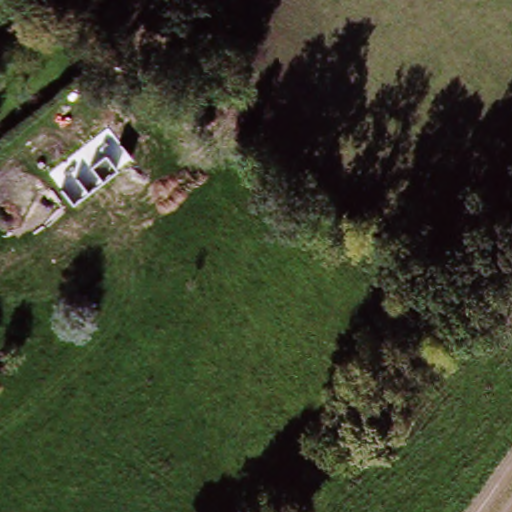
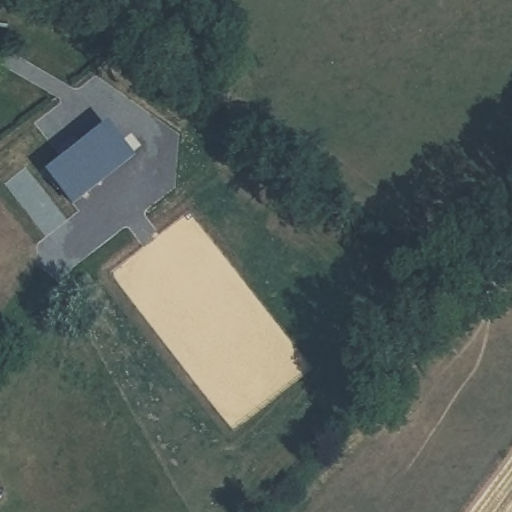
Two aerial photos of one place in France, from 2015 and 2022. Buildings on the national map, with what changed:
new [(135,159),(73,207),(47,172),(109,123),(135,159)]

